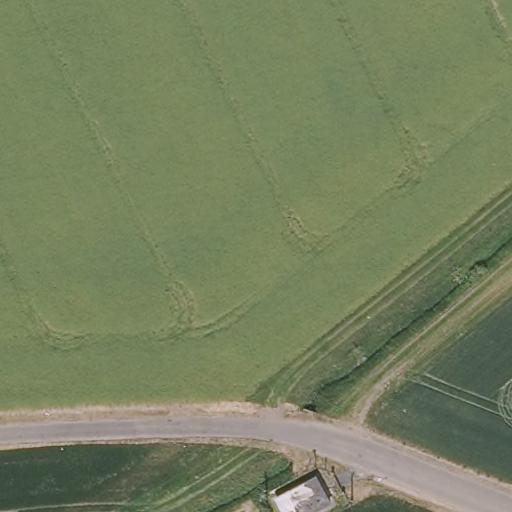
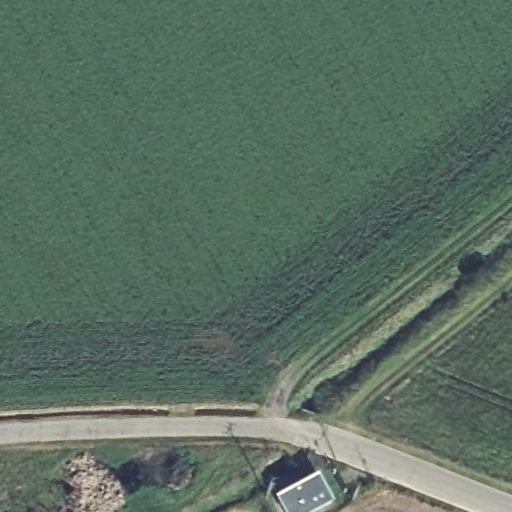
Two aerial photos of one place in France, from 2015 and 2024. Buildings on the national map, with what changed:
unchanged [(316,512),(296,512),(290,501),(315,486),(326,506),(316,512)]

